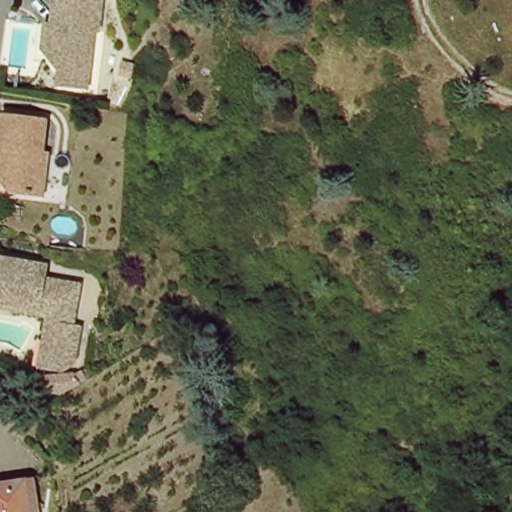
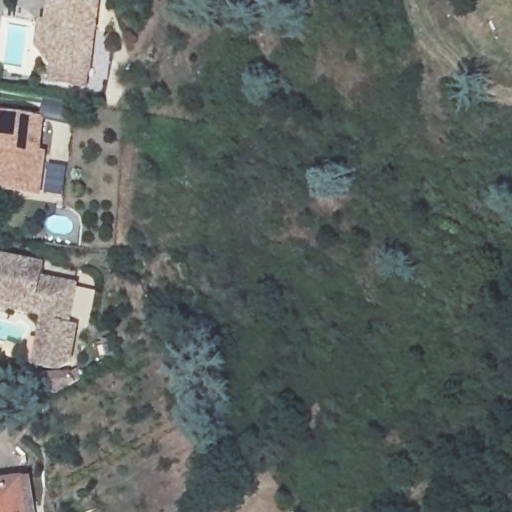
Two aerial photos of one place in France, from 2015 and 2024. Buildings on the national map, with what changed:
unchanged [(44,33),(45,21),(51,22),(53,0),(100,0),(97,28),(92,27),(88,69),(74,68),(57,66),(43,50),(44,33)]
unchanged [(2,118),(45,124),(41,156),(46,157),(41,198),(11,195),(2,183),(0,180),(0,135),(2,118)]
unchanged [(1,256),(50,265),(47,278),(81,284),(74,325),(80,326),(81,326),(80,334),(78,347),(54,343),(58,323),(52,311),(0,302),(0,262),(1,256)]
unchanged [(52,311),(58,323),(54,343),(78,347),(75,362),(63,370),(40,366),(48,324),(44,316),(0,308),(0,302),(52,311)]
unchanged [(26,483),(29,512),(0,512),(0,486),(26,483)]

